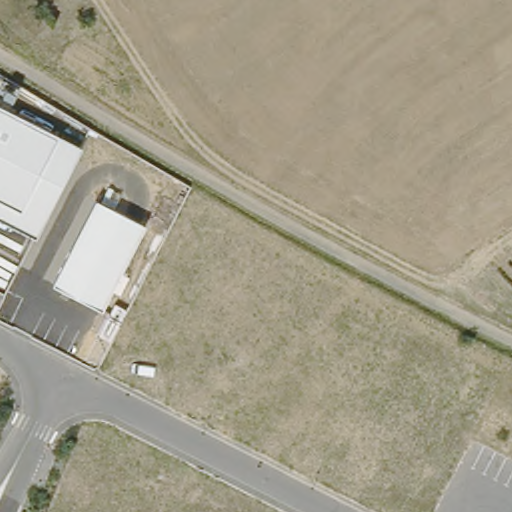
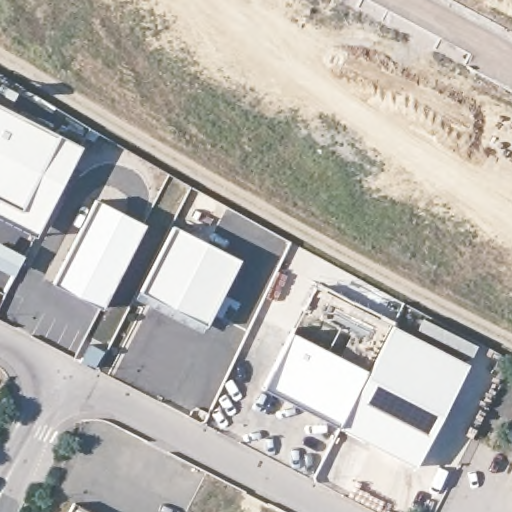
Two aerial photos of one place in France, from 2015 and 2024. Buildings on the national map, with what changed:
unchanged [(81,147),(35,237),(0,219),(0,106),(81,147)]
unchanged [(97,199),(145,225),(101,308),(53,283),(97,199)]
new [(169,227),(236,262),(201,328),(134,293),(169,227)]
new [(391,320),(387,327),(364,373),(325,353),(337,328),(301,308),(315,282),(391,320)]
new [(364,373),(387,327),(463,366),(410,468),(335,430),(364,373)]
new [(287,333),(364,373),(335,430),(258,390),(287,333)]
new [(95,508),(93,512),(62,512),(71,496),(95,508)]

